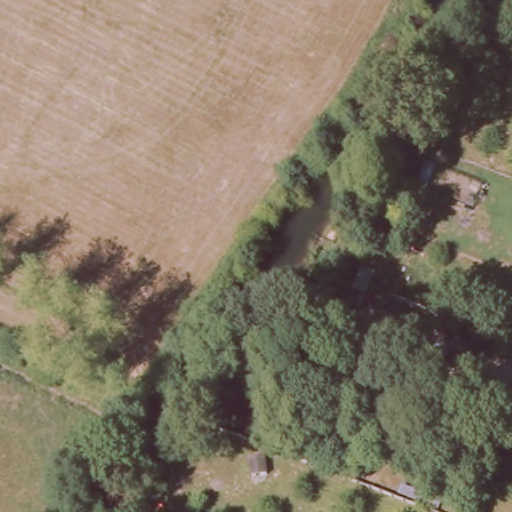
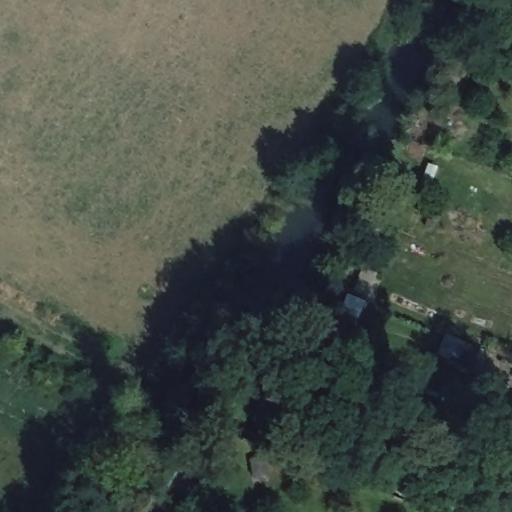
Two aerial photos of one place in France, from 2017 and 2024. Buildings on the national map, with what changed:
unchanged [(411,344),(359,322),(353,345),(337,335),(344,310),(331,300),(338,281),(421,321),(411,344)]
unchanged [(454,338),(448,354),(425,345),(431,329),(454,338)]

